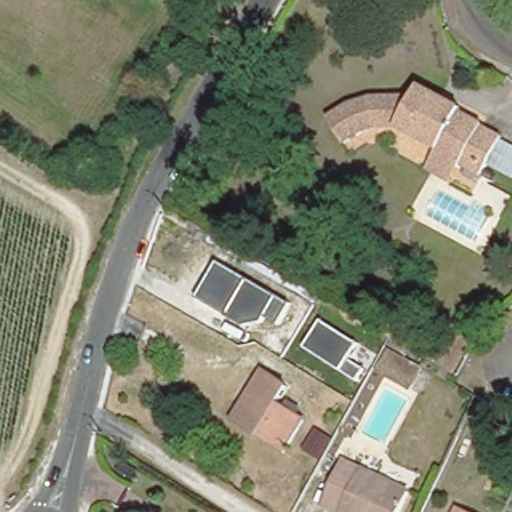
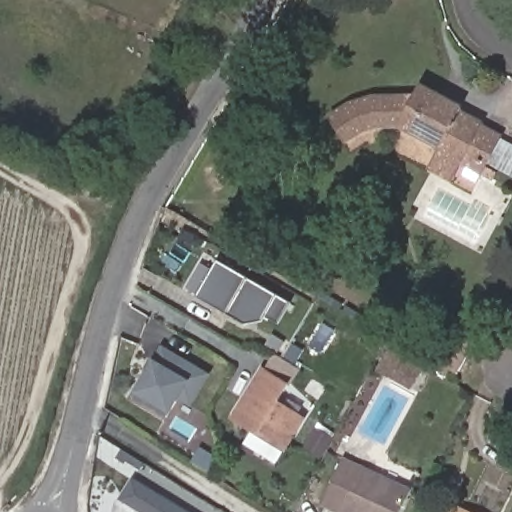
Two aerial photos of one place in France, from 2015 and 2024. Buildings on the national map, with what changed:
unchanged [(435,164),(447,144),(403,120),(375,126),(350,138),(333,110),(362,95),(382,91),(420,90),(425,80),(466,102),(464,107),(487,119),(485,121),(506,133),(500,146),(495,156),(486,170),(465,158),(455,175),(435,164)]
unchanged [(500,146),(506,133),(512,136),(512,166),(495,156),(500,146)]
unchanged [(277,325),(266,318),(264,322),(240,327),(226,312),(199,297),(220,261),(293,303),(277,325)]
unchanged [(355,344),(346,359),(362,369),(356,378),(305,345),(320,322),(355,344)]
unchanged [(380,356),(371,350),(381,332),(391,338),(380,356)]
unchanged [(435,363),(450,332),(475,344),(457,376),(435,363)]
new [(190,408),(179,400),(170,416),(134,394),(153,360),(162,345),(210,374),(190,408)]
unchanged [(420,370),(410,388),(379,370),(390,353),(420,370)]
unchanged [(286,380),(276,397),(302,413),(283,444),(233,412),(262,365),(286,380)]
new [(194,460),(202,448),(213,455),(205,467),(194,460)]
unchanged [(397,512),(339,512),(323,505),(343,460),(407,491),(397,512)]
new [(134,478),(187,512),(140,512),(119,498),(134,478)]
unchanged [(482,512),(451,512),(456,500),(482,512)]

